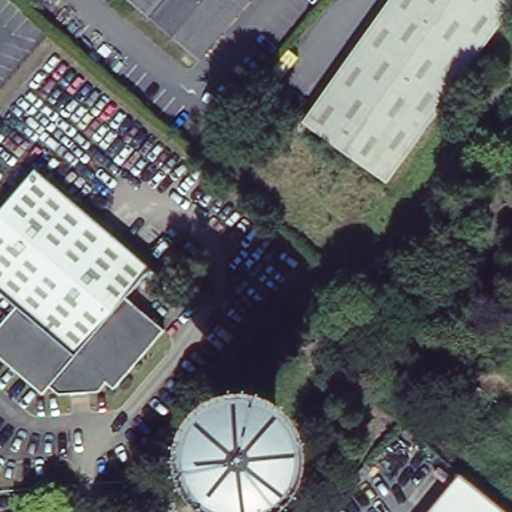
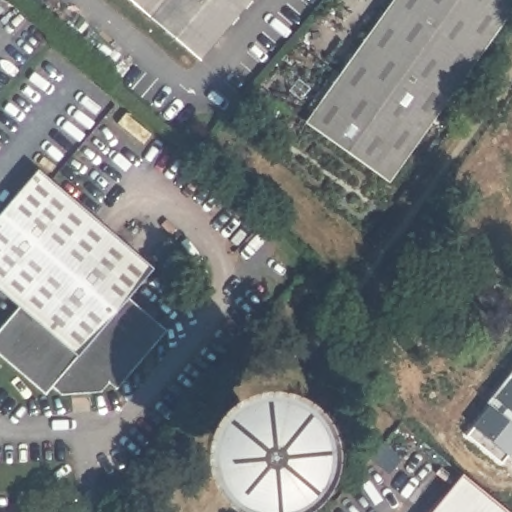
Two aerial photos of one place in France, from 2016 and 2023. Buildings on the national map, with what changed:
unchanged [(245,4),(244,3),(237,12),(238,13),(232,20),(230,19),(199,55),(135,0),(248,0),(245,4)]
unchanged [(396,0),(512,0),(512,16),(407,163),(406,162),(392,182),(310,124),(324,104),(323,103),(396,0)]
unchanged [(152,264),(126,294),(164,326),(115,384),(107,378),(100,387),(88,388),(88,391),(72,391),(72,389),(60,390),(51,382),(44,389),(0,352),(0,324),(19,303),(0,287),(0,208),(36,165),(152,264)]
new [(512,381),(512,453),(503,465),(468,435),(512,381)]
unchanged [(512,511),(512,512),(426,512),(461,470),(512,511)]

